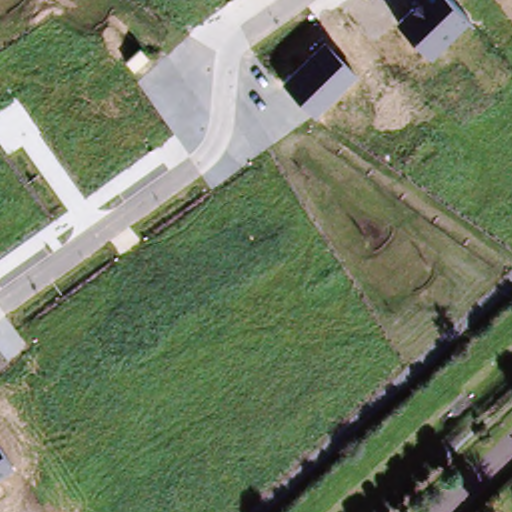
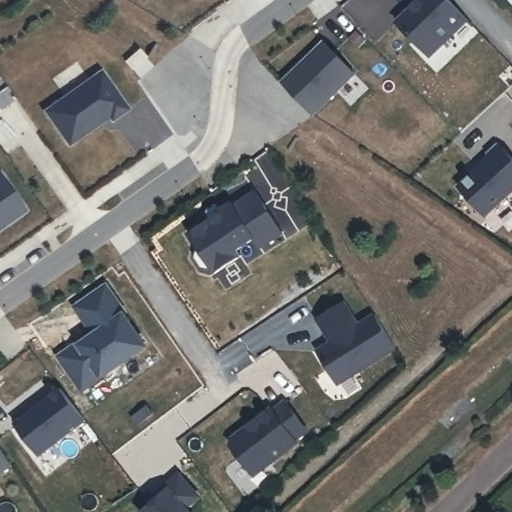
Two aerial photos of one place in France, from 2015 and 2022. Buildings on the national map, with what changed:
unchanged [(420,0),(450,0),(470,20),(430,56),(397,20),(420,0)]
unchanged [(283,81),(325,42),(356,73),(315,115),(283,81)]
new [(100,72),(126,109),(110,121),(107,117),(67,145),(44,112),(100,72)]
new [(459,188),(489,159),(486,156),(498,145),(512,160),(512,194),(486,218),(459,188)]
new [(0,226),(0,177),(23,209),(0,226)]
new [(204,208),(212,202),(217,203),(221,209),(230,203),(232,206),(254,192),(282,234),(259,249),(252,239),(235,250),(239,257),(214,273),(210,269),(208,270),(200,269),(193,258),(195,249),(197,248),(187,232),(207,219),(202,213),(204,208)]
new [(75,344),(77,346),(92,335),(73,307),(105,285),(124,314),(122,315),(144,347),(80,391),(57,357),(75,344)]
new [(330,388),(310,355),(324,346),(310,323),(342,303),(357,325),(373,315),(394,348),(330,388)]
new [(59,389),(84,421),(38,456),(14,424),(59,389)]
new [(226,441),(270,409),(271,411),(283,402),(305,431),(293,440),(295,443),(252,475),(226,441)]
unchanged [(0,474),(0,444),(14,466),(0,474)]
new [(151,503),(149,499),(180,471),(205,497),(190,508),(194,512),(140,512),(151,503)]

